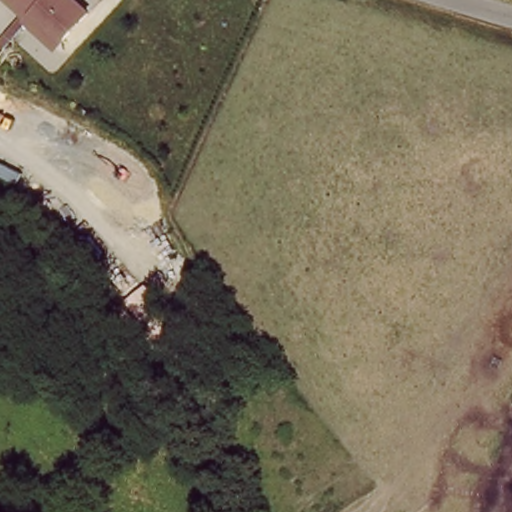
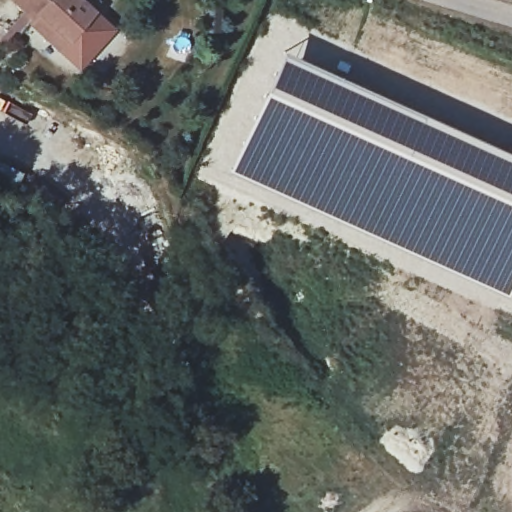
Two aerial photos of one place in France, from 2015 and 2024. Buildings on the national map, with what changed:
unchanged [(88,16),(62,43),(34,17),(29,23),(4,0),(70,0),(88,16)]
new [(512,149),(512,286),(508,295),(367,232),(229,168),(263,91),(284,48),(512,149)]
new [(126,301),(146,285),(184,332),(164,348),(126,301)]

